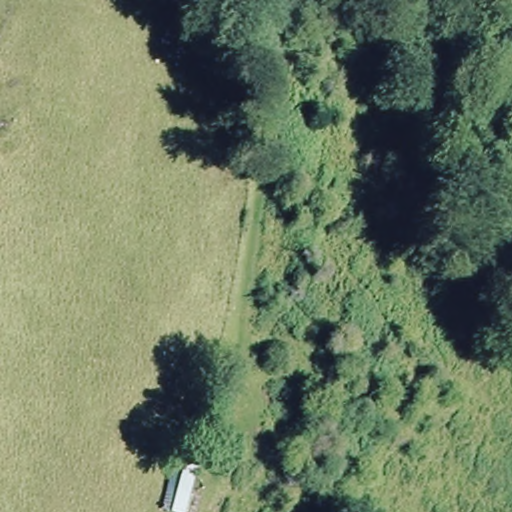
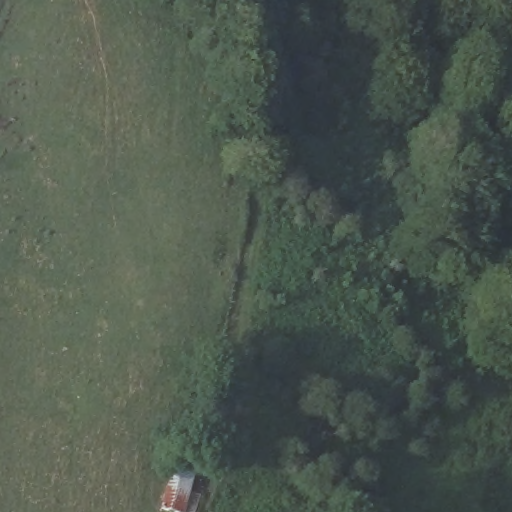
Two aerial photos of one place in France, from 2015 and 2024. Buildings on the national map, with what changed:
unchanged [(192,512),(166,512),(177,466),(198,471),(192,512)]

